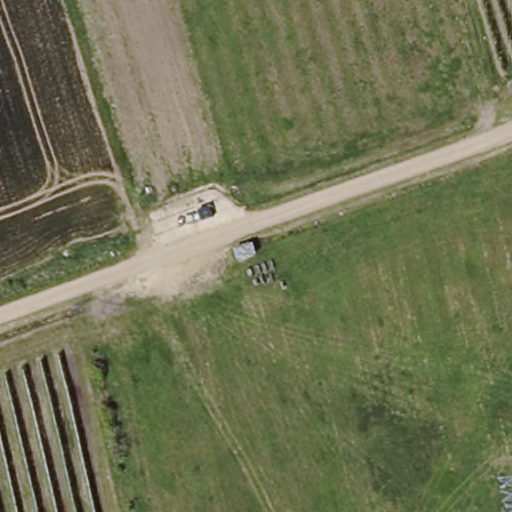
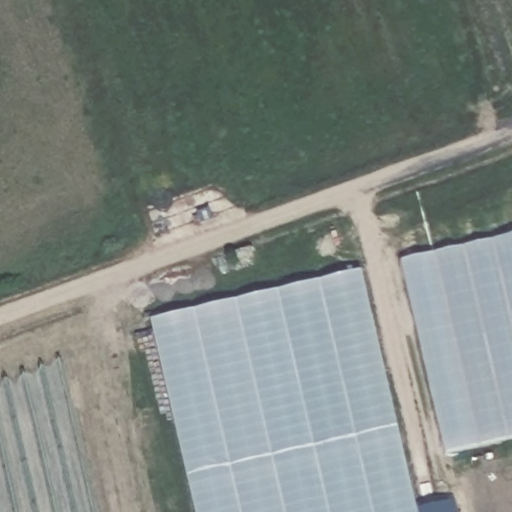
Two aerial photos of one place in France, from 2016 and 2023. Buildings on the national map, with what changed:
new [(151,318),(360,269),(415,508),(456,498),(459,512),(196,512),(151,318)]

